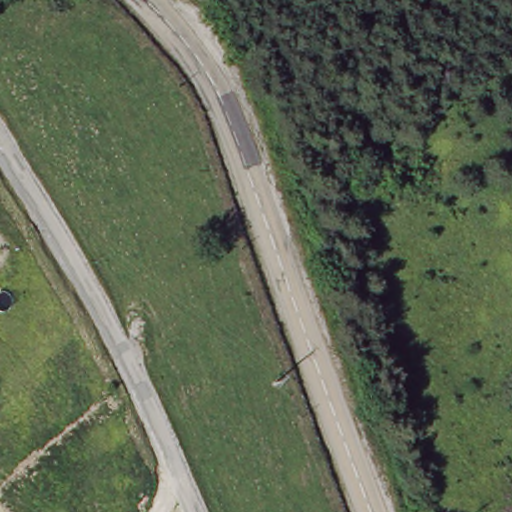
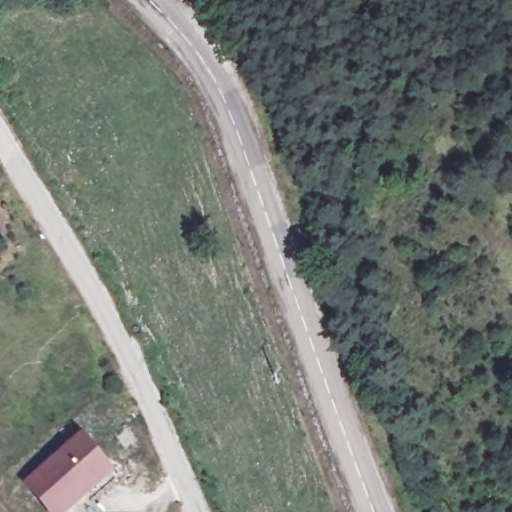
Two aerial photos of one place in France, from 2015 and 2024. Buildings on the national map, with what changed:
new [(114,472),(65,512),(54,512),(30,482),(85,438),(114,472)]
new [(119,480),(95,500),(105,512),(66,512),(65,512),(114,472),(119,480)]

